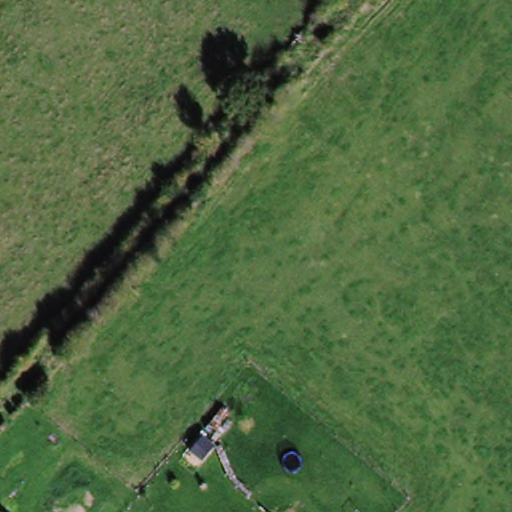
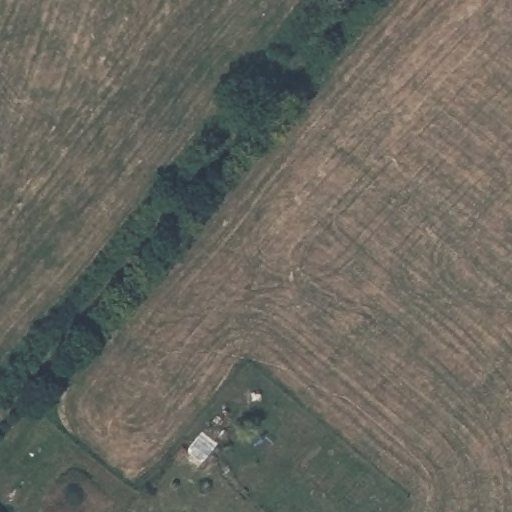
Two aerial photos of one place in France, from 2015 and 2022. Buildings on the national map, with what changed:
unchanged [(0,512),(0,511),(1,512),(0,512)]

